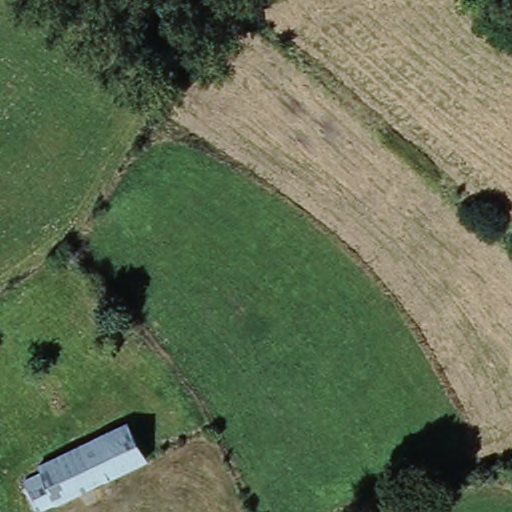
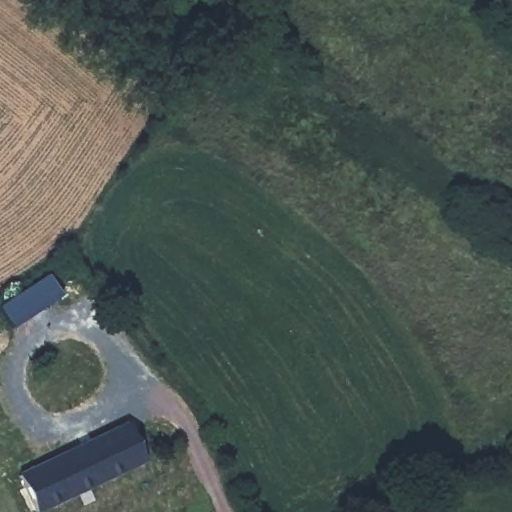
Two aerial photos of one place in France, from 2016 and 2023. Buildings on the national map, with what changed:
new [(46,275),(61,295),(13,328),(0,307),(0,304),(46,275)]
unchanged [(22,489),(42,480),(38,475),(108,441),(128,431),(145,468),(127,477),(53,512),(33,512),(22,489)]

